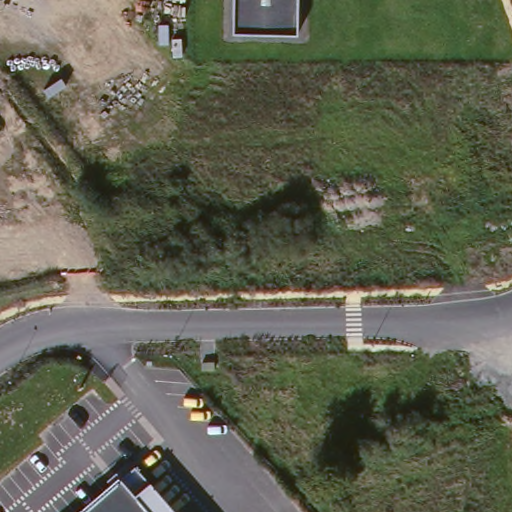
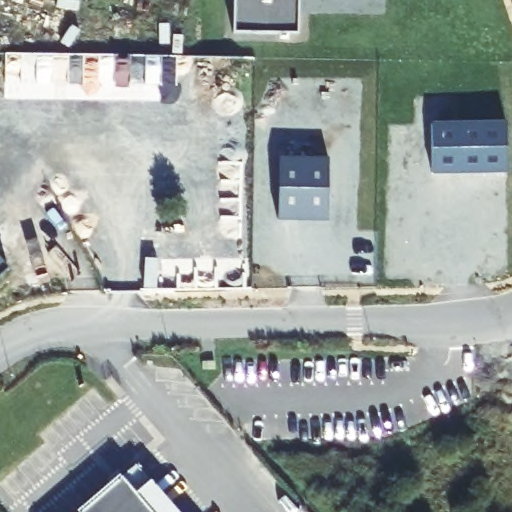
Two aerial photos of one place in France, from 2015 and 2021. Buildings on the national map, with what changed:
unchanged [(233,0),(299,0),(299,35),(233,34),(233,0)]
new [(506,175),(431,175),(431,122),(505,122),(506,175)]
new [(329,157),(329,222),(278,222),(278,156),(329,157)]
unchanged [(133,467),(173,512),(82,512),(133,467)]

